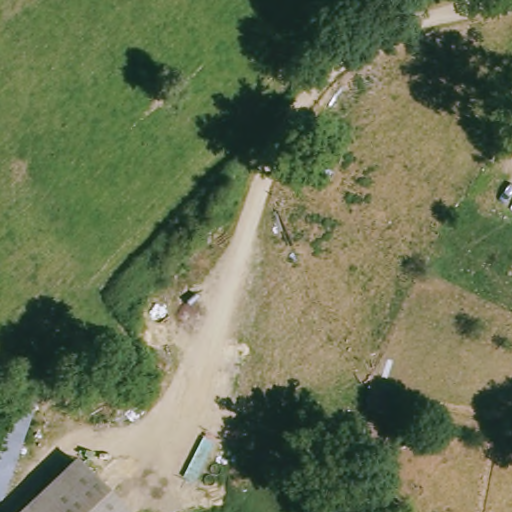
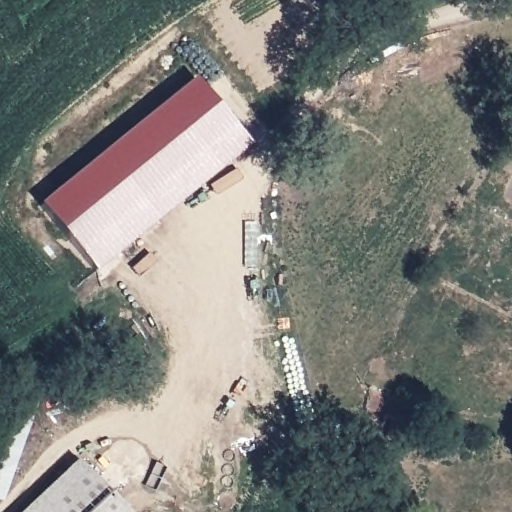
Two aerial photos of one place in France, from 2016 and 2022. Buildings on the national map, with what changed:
new [(95,271),(40,205),(196,78),(251,145),(95,271)]
unchanged [(20,392),(49,401),(13,502),(0,497),(0,453),(20,392)]
unchanged [(127,512),(20,512),(74,460),(127,512)]

